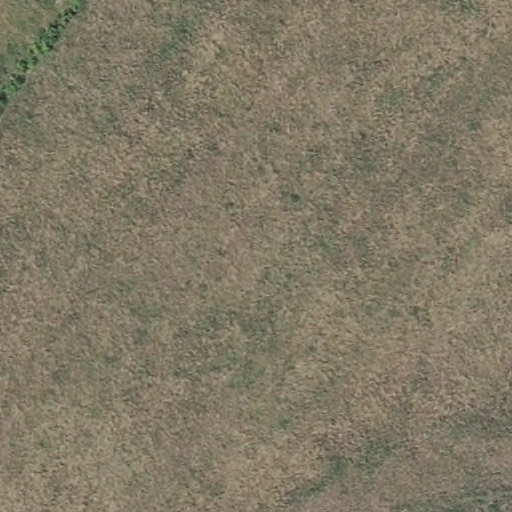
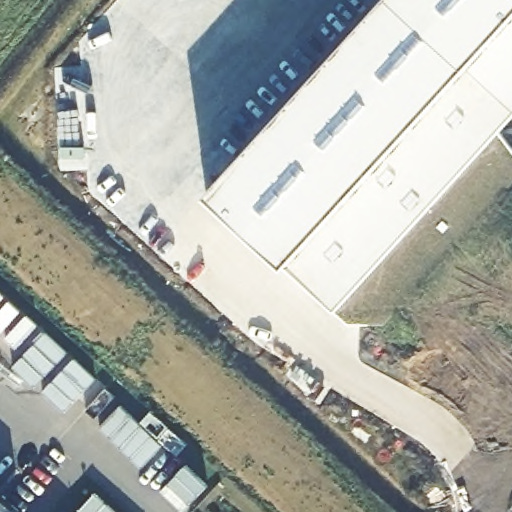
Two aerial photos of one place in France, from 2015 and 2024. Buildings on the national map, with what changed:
new [(291,259),(286,263),(208,191),(381,0),(512,0),(512,115),(335,309),(291,259)]
new [(95,494),(116,512),(78,512),(95,494)]
new [(19,512),(0,512),(0,495),(19,512)]

